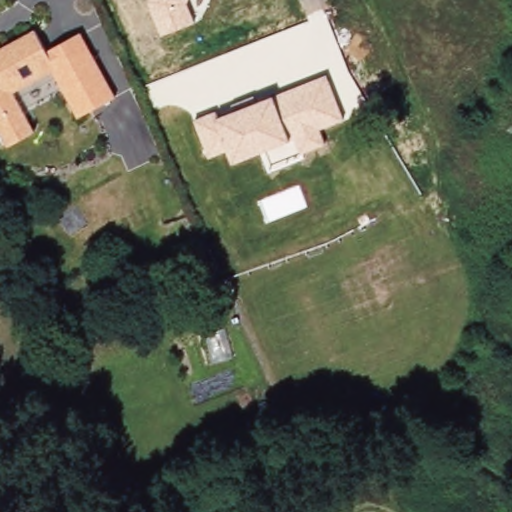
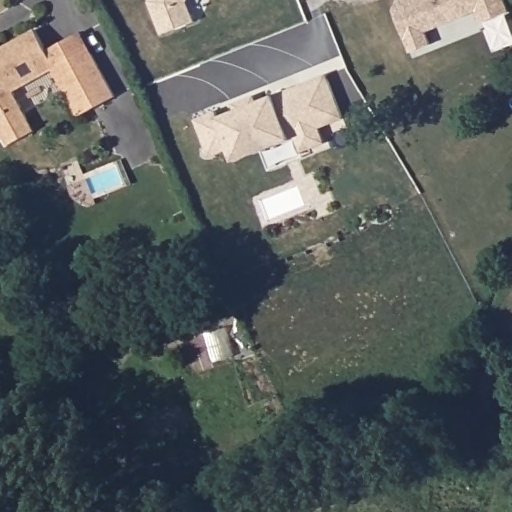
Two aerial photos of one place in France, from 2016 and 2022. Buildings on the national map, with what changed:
unchanged [(149,4),(150,0),(190,0),(189,3),(195,23),(163,34),(149,4)]
new [(511,12),(481,23),(476,12),(426,31),(431,45),(410,53),(393,8),(397,0),(506,0),(511,12)]
unchanged [(3,44),(5,48),(39,30),(50,50),(60,69),(55,71),(16,92),(37,132),(11,146),(0,126),(0,46),(3,44)]
unchanged [(83,33),(118,95),(81,114),(55,71),(60,69),(50,50),(83,33)]
unchanged [(229,150),(209,158),(195,120),(218,110),(221,117),(234,112),(230,105),(255,95),(258,102),(274,96),(328,75),(345,118),(321,128),(327,143),(303,153),(296,137),(292,139),(235,163),(229,150)]

